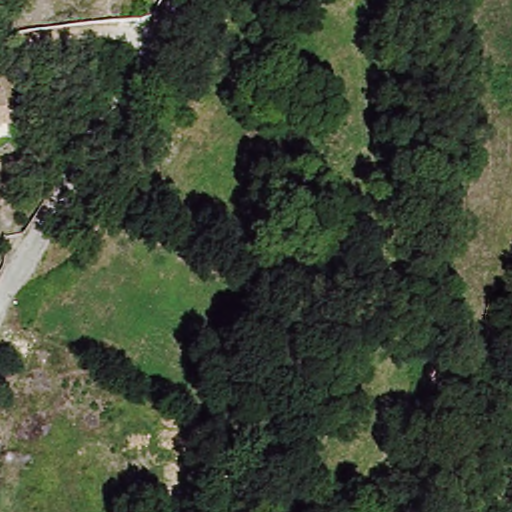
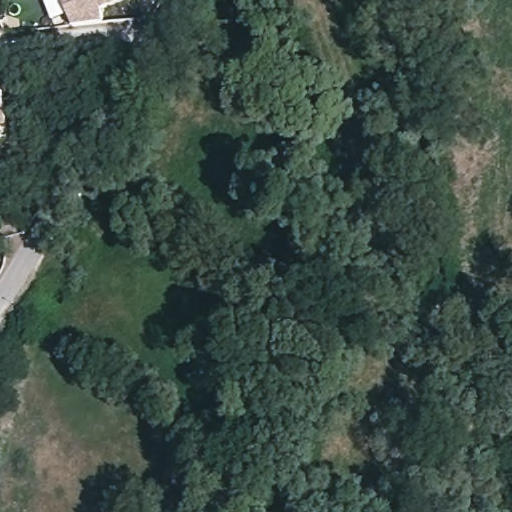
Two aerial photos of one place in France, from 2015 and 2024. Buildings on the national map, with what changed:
new [(73,24),(67,7),(65,0),(126,0),(126,1),(103,10),(105,22),(73,24)]
unchanged [(5,95),(10,127),(0,129),(0,96),(5,95)]

